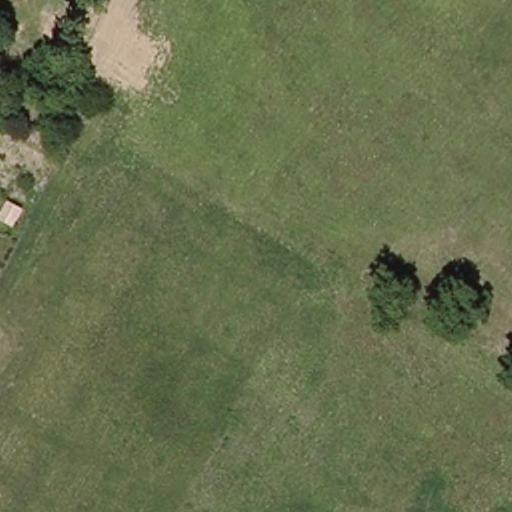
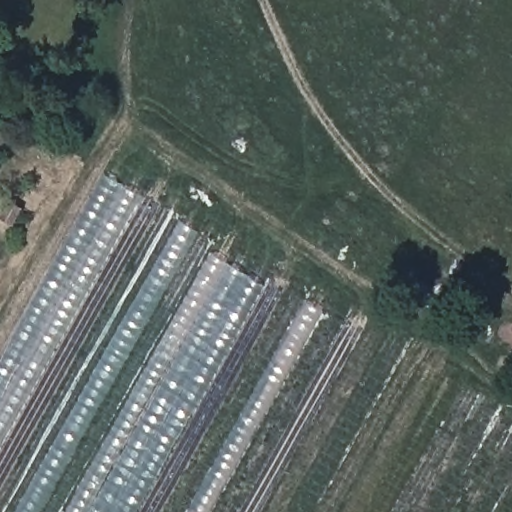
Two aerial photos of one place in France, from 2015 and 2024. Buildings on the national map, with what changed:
new [(0,512),(0,359),(116,156),(354,309),(239,512),(0,512)]
new [(265,512),(375,318),(469,371),(460,383),(512,415),(512,512),(265,512)]

